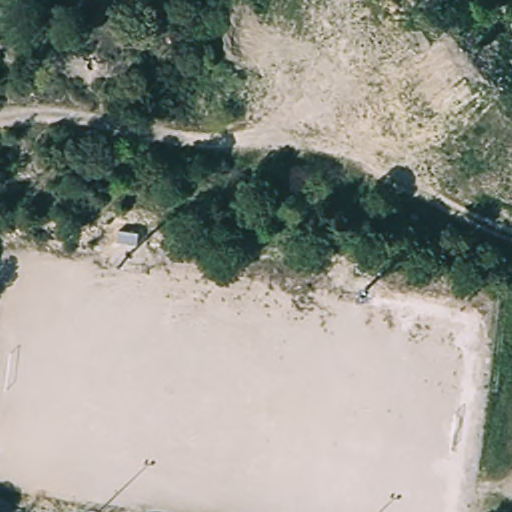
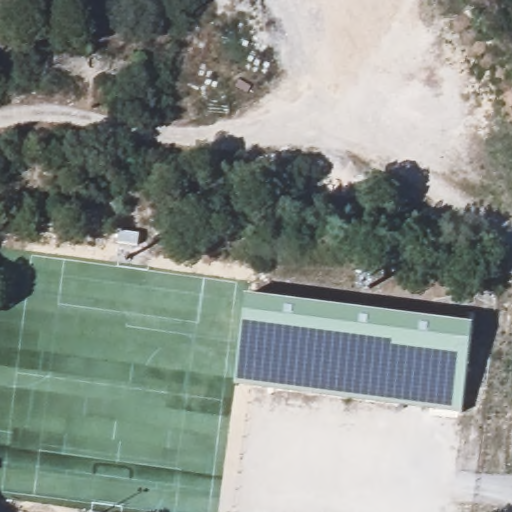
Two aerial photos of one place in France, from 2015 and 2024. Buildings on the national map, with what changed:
new [(474,323),(461,415),(235,385),(247,294),(474,323)]

